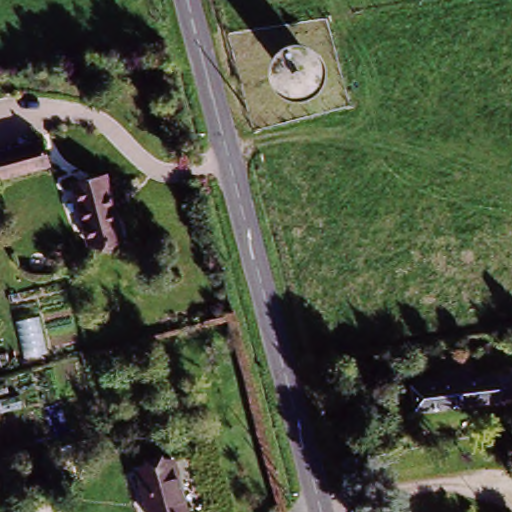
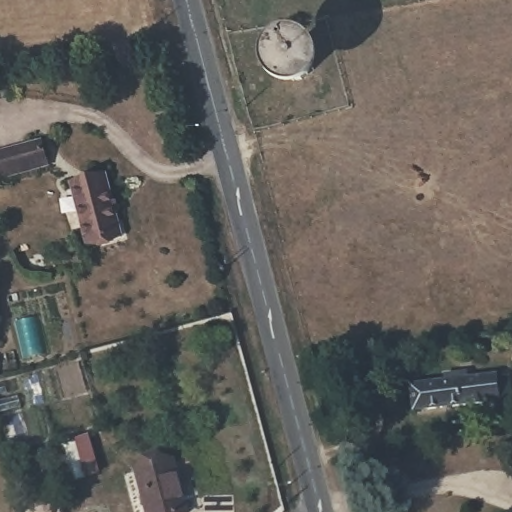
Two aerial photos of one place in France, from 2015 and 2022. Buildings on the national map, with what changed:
unchanged [(0,165),(0,140),(44,131),(50,154),(0,165)]
unchanged [(123,238),(85,246),(73,188),(108,178),(123,238)]
unchanged [(407,411),(404,384),(490,376),(504,374),(507,395),(493,397),(493,402),(407,411)]
unchanged [(143,512),(134,474),(178,463),(188,512),(143,512)]

